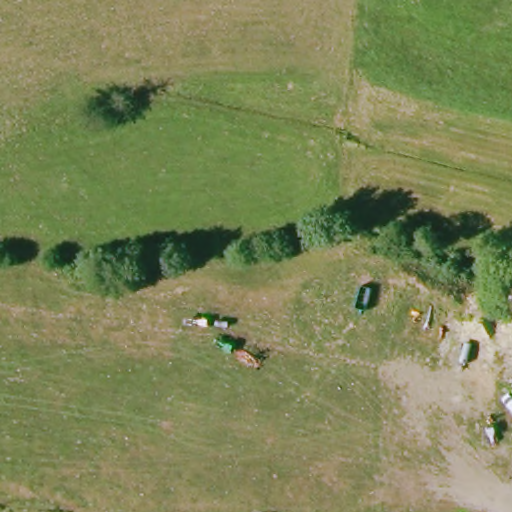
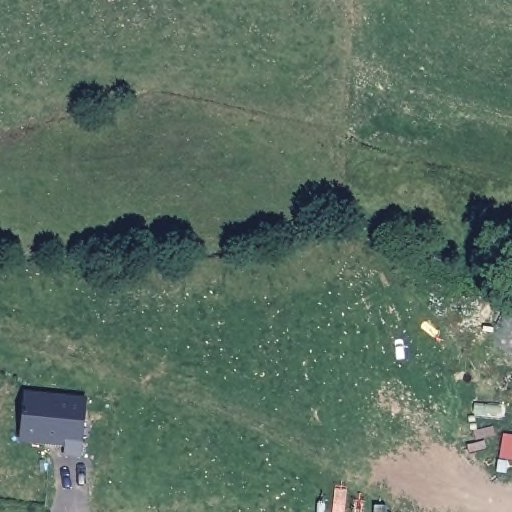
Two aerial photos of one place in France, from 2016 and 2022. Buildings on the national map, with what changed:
new [(85,398),(81,457),(64,456),(65,445),(20,442),(23,391),(85,398)]

